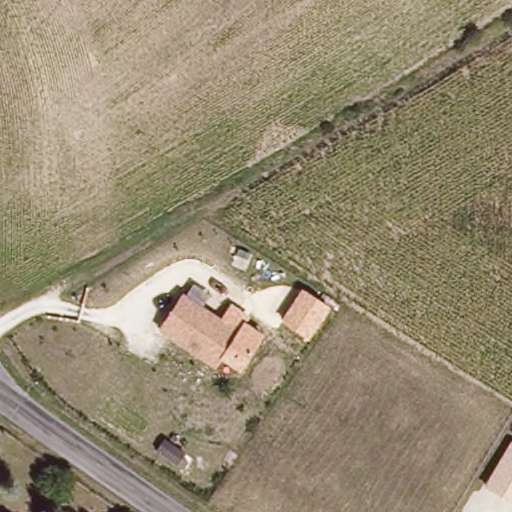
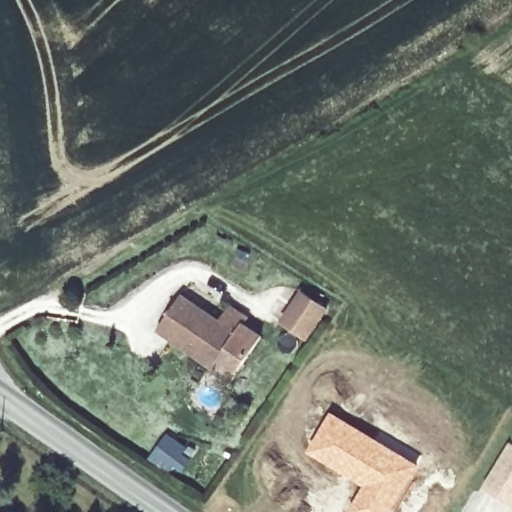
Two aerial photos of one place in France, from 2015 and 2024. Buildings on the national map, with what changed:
unchanged [(327,307),(307,339),(279,322),(300,290),(327,307)]
unchanged [(159,332),(182,294),(239,331),(216,369),(159,332)]
unchanged [(239,331),(222,321),(232,305),(251,316),(246,323),(264,334),(241,371),(222,360),(239,331)]
new [(421,464),(391,512),(352,512),(350,511),(365,485),(307,450),(332,410),(421,464)]
unchanged [(512,441),(512,501),(485,485),(511,441),(512,441)]

